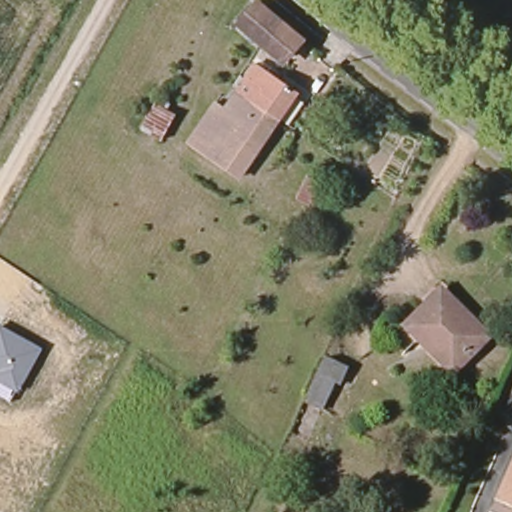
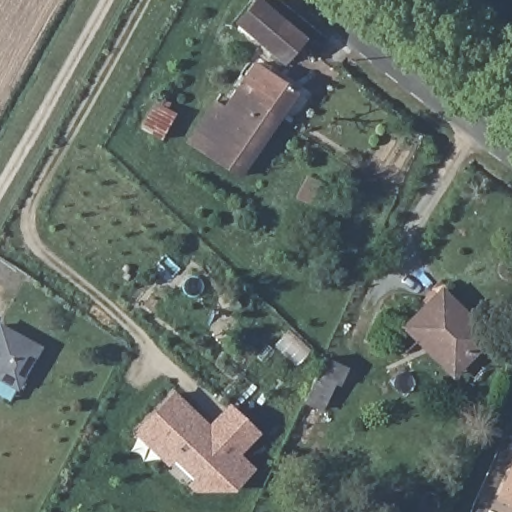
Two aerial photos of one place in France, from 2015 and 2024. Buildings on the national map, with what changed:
demolished [(298,36),(279,59),(238,25),(258,1),(298,36)]
unchanged [(255,66),(294,93),(276,119),(235,90),(255,66)]
unchanged [(276,119),(240,175),(189,141),(215,103),(222,108),(235,90),(276,119)]
unchanged [(161,138),(142,128),(154,104),(174,113),(161,138)]
unchanged [(305,202),(298,198),(307,180),(314,184),(305,202)]
unchanged [(405,327),(440,289),(487,337),(473,352),(452,374),(420,342),(405,327)]
unchanged [(17,391),(0,382),(0,325),(42,349),(17,391)]
unchanged [(325,360),(345,371),(337,386),(331,385),(320,410),(305,403),(325,360)]
new [(240,455),(255,470),(235,492),(195,493),(189,486),(192,481),(174,462),(167,467),(133,432),(174,390),(209,425),(230,403),(262,434),(240,455)]
unchanged [(500,497),(512,468),(512,502),(500,497)]

